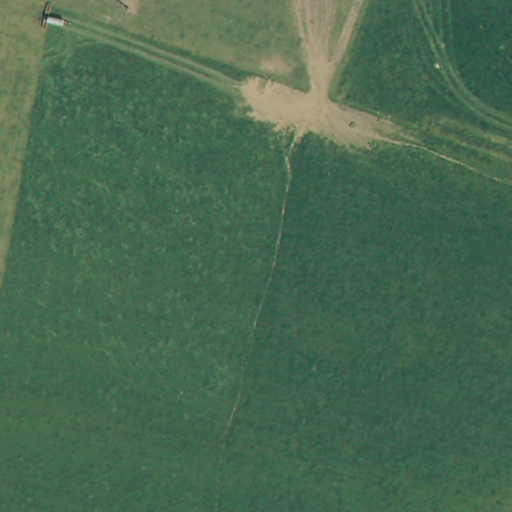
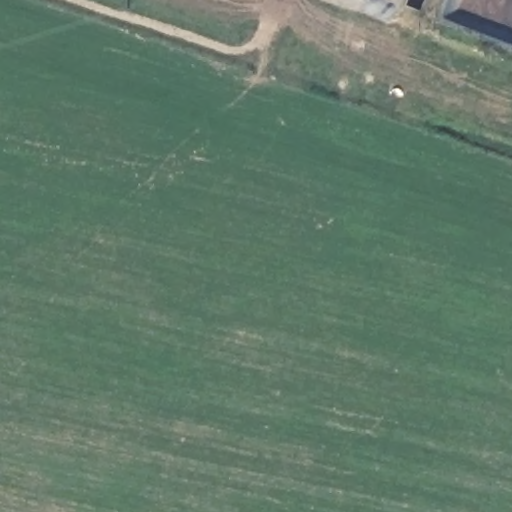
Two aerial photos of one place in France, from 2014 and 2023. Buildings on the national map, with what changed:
[]

